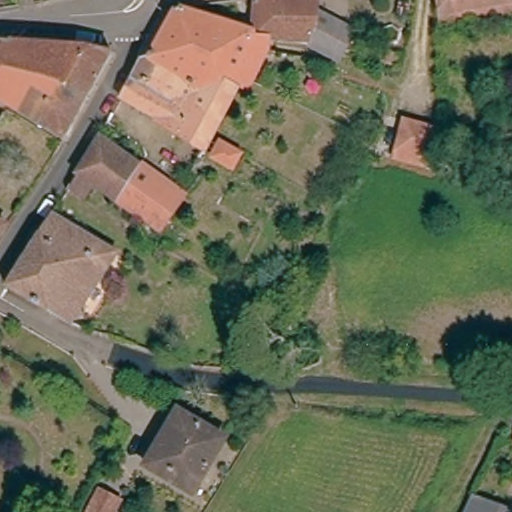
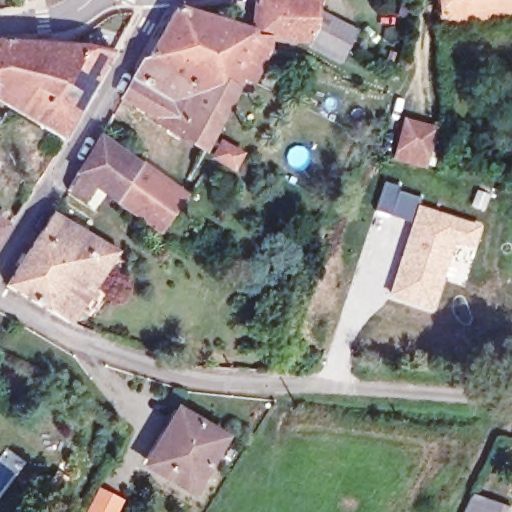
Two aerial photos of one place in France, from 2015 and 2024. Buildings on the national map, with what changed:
unchanged [(23,2),(23,0),(33,0),(23,2)]
demolished [(48,6),(36,9),(34,0),(46,0),(48,6)]
unchanged [(322,15),(319,41),(317,41),(276,37),(259,36),(259,32),(262,0),(323,0),(322,15)]
unchanged [(472,27),(436,26),(433,0),(512,0),(512,20),(503,23),(472,27)]
unchanged [(191,127),(189,131),(162,115),(129,95),(141,74),(145,77),(182,10),(192,9),(259,32),(259,36),(276,37),(272,49),(263,65),(252,85),(241,79),(218,123),(209,139),(191,127)]
unchanged [(319,41),(322,15),(359,29),(350,55),(347,62),(316,46),(317,41),(319,41)]
unchanged [(66,58),(70,60),(59,81),(61,82),(38,121),(13,106),(0,98),(0,37),(74,44),(66,58)]
unchanged [(38,121),(61,82),(59,81),(70,60),(66,58),(74,44),(95,46),(113,51),(68,139),(38,121)]
unchanged [(402,68),(396,65),(400,57),(406,60),(402,68)]
unchanged [(410,125),(441,133),(430,172),(399,164),(410,125)]
unchanged [(70,188),(78,175),(104,134),(141,161),(116,202),(97,188),(89,201),(70,188)]
unchanged [(234,162),(223,155),(232,141),(243,149),(234,162)]
unchanged [(146,223),(116,202),(141,161),(183,192),(173,209),(159,232),(146,223)]
new [(383,180),(420,196),(418,203),(410,222),(373,209),(383,180)]
new [(410,222),(418,203),(483,225),(475,249),(457,244),(433,311),(387,297),(410,222)]
unchanged [(117,252),(76,322),(10,286),(55,213),(117,252)]
unchanged [(0,244),(0,226),(8,231),(0,244)]
unchanged [(195,488),(156,466),(170,440),(164,436),(176,413),(222,439),(195,488)]
unchanged [(512,502),(512,510),(511,512),(469,512),(477,488),(512,502)]
unchanged [(92,512),(103,493),(122,504),(118,512),(92,512)]

